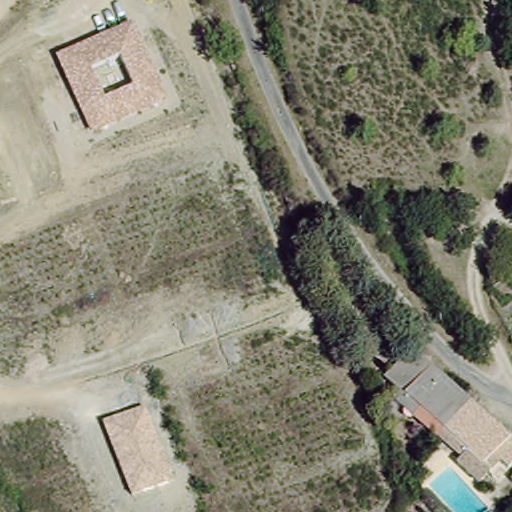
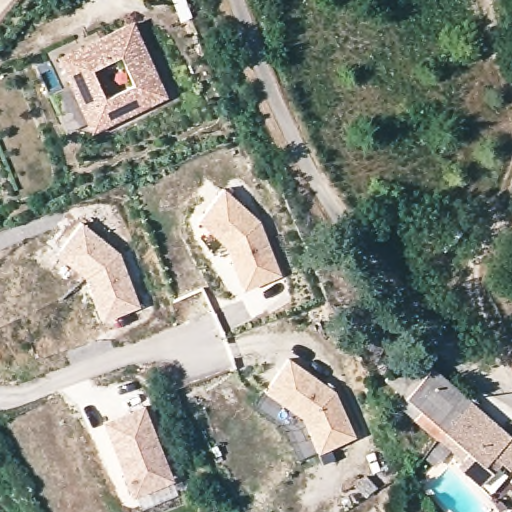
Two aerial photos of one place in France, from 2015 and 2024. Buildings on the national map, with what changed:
unchanged [(57,56),(134,21),(168,99),(93,133),(57,56)]
new [(229,261),(222,242),(194,216),(219,185),(253,213),(276,272),(244,284),(238,286),(229,261)]
new [(120,252),(140,308),(102,321),(86,278),(56,255),(81,222),(120,252)]
new [(331,391),(349,434),(312,450),(297,415),(282,403),(259,388),(263,383),(283,356),(331,391)]
unchanged [(445,439),(442,443),(395,403),(400,397),(388,386),(417,356),(472,403),(445,439)]
unchanged [(466,464),(442,443),(445,439),(472,403),(512,439),(512,476),(504,469),(494,480),(484,491),(461,470),(466,464)]
unchanged [(103,421),(146,405),(175,480),(132,496),(103,421)]

